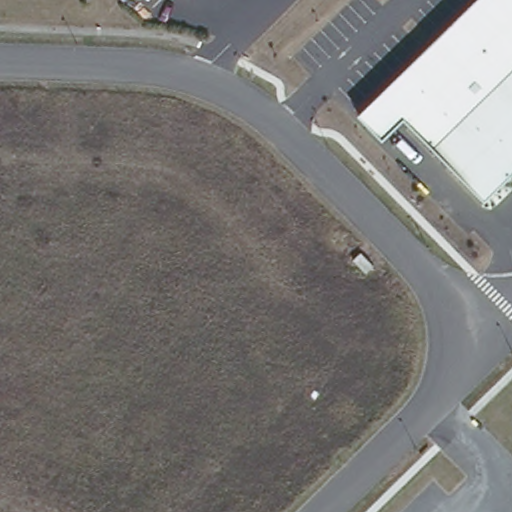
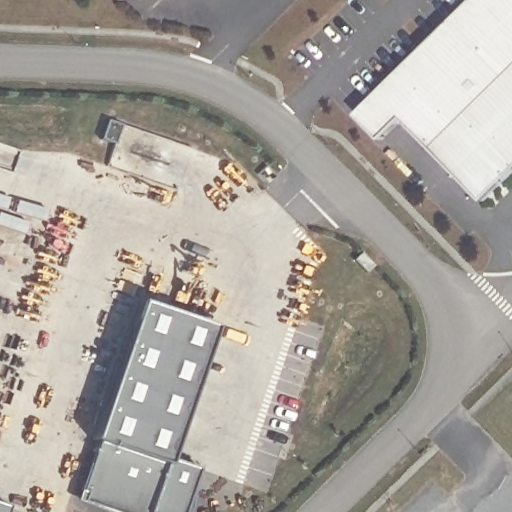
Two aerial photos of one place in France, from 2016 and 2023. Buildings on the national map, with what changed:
unchanged [(121,0),(125,0),(123,2),(121,0)]
unchanged [(402,113),(380,134),(360,112),(475,0),(512,0),(512,173),(486,198),(402,113)]
new [(211,325),(166,457),(197,468),(182,512),(113,512),(81,501),(84,492),(79,490),(96,441),(88,439),(136,299),(211,325)]
new [(5,505),(3,512),(0,512),(0,504),(5,505)]

